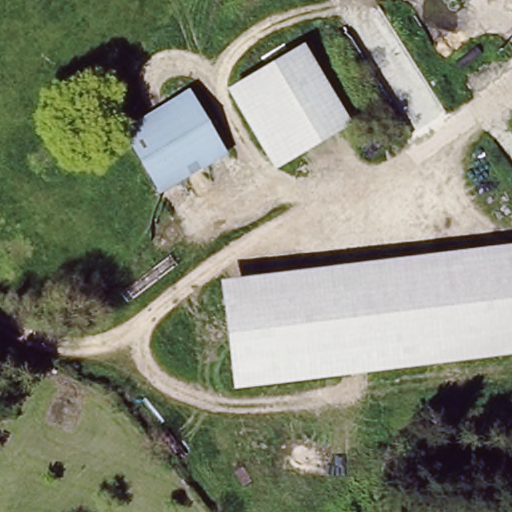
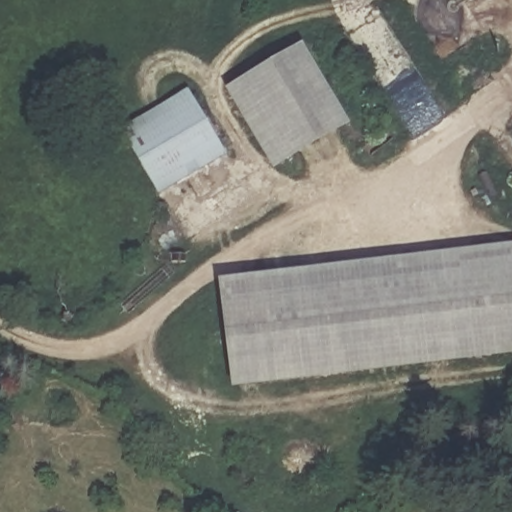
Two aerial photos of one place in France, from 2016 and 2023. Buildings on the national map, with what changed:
unchanged [(352,123),(275,169),(226,89),(303,42),(352,123)]
unchanged [(187,92),(224,149),(161,189),(126,133),(187,92)]
unchanged [(234,389),(219,279),(512,242),(512,355),(234,389)]

